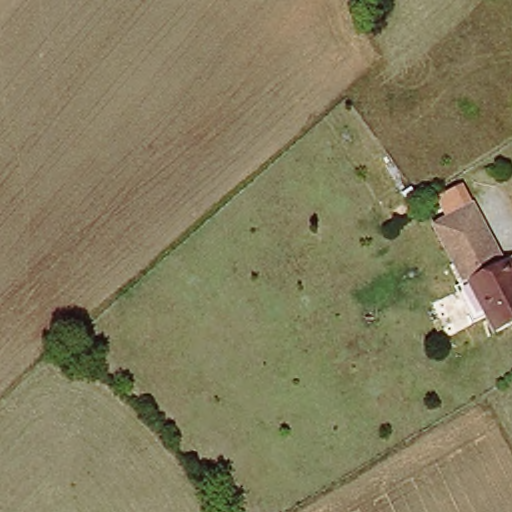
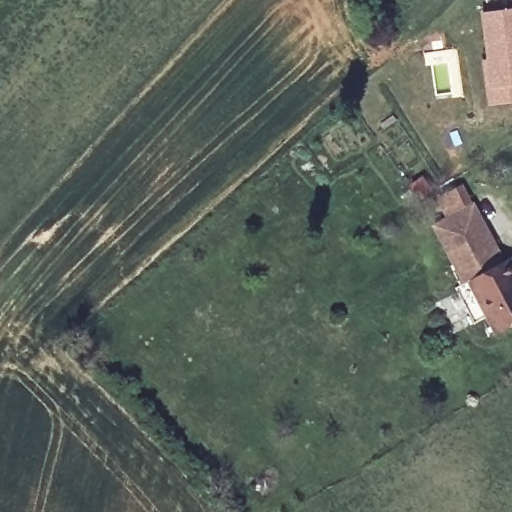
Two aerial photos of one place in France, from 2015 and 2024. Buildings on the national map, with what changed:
new [(512,101),(489,105),(482,60),(487,59),(480,12),(512,7),(512,101)]
unchanged [(470,201),(502,257),(509,252),(512,258),(512,319),(494,329),(484,311),(471,319),(467,321),(452,291),(464,282),(431,226),(470,201)]

